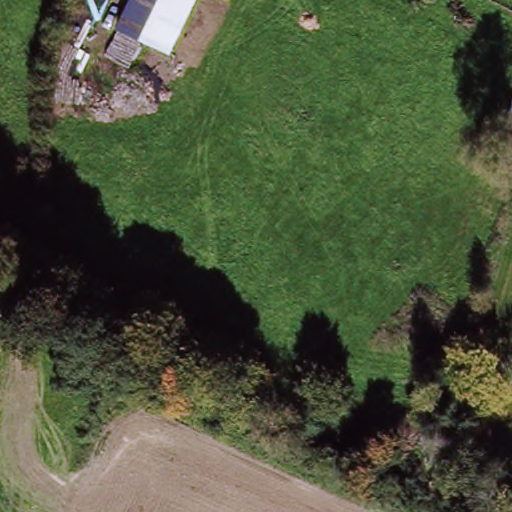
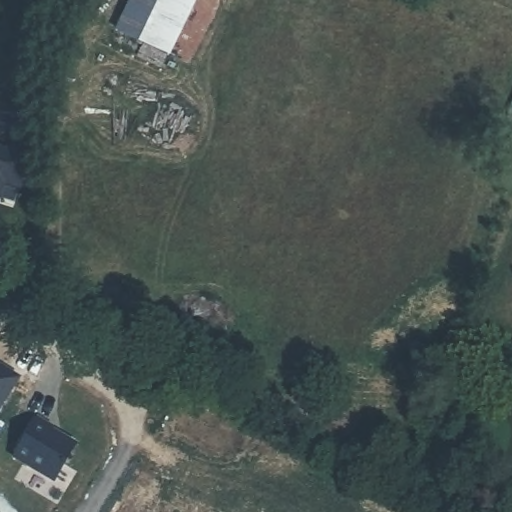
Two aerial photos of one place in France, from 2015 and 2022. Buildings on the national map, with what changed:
unchanged [(167,52),(116,25),(129,0),(190,0),(167,52)]
unchanged [(506,115),(512,100),(512,117),(506,115)]
new [(52,423),(50,428),(76,443),(53,479),(13,457),(37,415),(52,423)]

